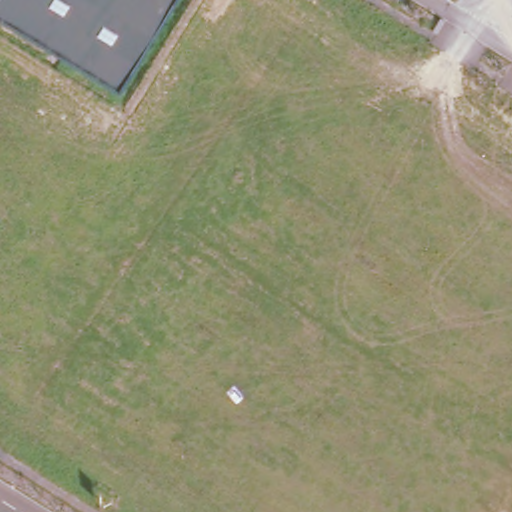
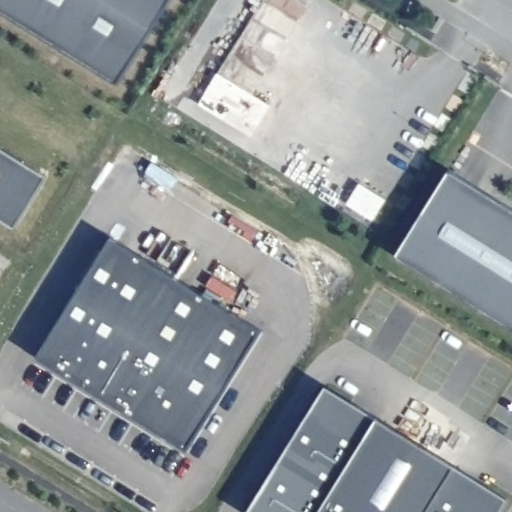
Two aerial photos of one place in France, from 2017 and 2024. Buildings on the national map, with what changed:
unchanged [(119,85),(0,11),(0,0),(172,0),(119,85)]
new [(14,230),(0,222),(0,149),(47,178),(14,230)]
new [(512,211),(512,330),(397,258),(449,171),(512,211)]
new [(260,333),(187,453),(38,360),(111,241),(260,333)]
new [(500,512),(248,512),(325,390),(507,501),(500,512)]

